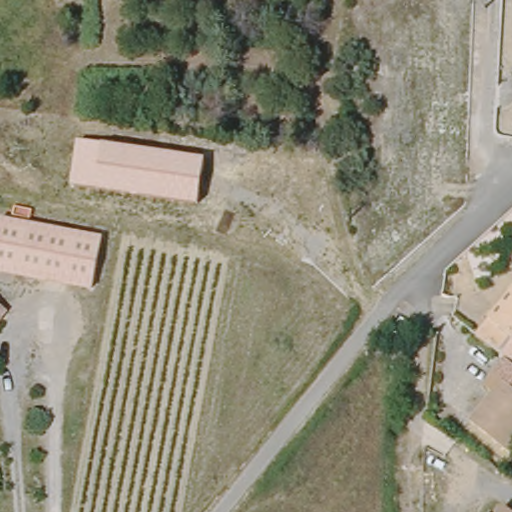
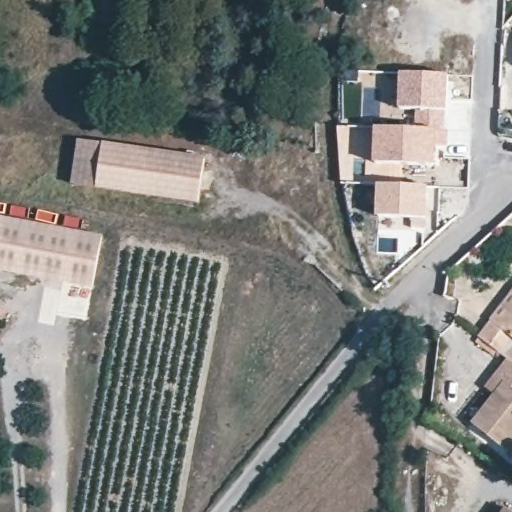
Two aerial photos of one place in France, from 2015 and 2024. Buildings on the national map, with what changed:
new [(377,163),(378,128),(415,130),(417,112),(399,110),(401,75),(448,76),(444,130),(447,130),(445,147),(433,146),(433,165),(377,163)]
unchanged [(72,184),(78,140),(104,143),(97,187),(72,184)]
unchanged [(104,143),(205,157),(198,202),(97,187),(104,143)]
new [(377,217),(379,186),(429,187),(426,220),(377,217)]
unchanged [(92,281),(0,265),(0,215),(1,212),(102,231),(92,281)]
unchanged [(478,336),(491,320),(512,293),(512,363),(490,346),(478,336)]
unchanged [(0,318),(0,306),(6,310),(0,318)]
unchanged [(494,395),(485,388),(507,360),(512,364),(512,455),(472,424),(494,395)]

